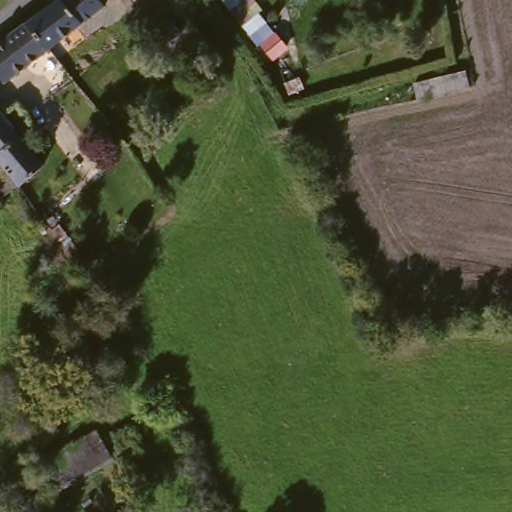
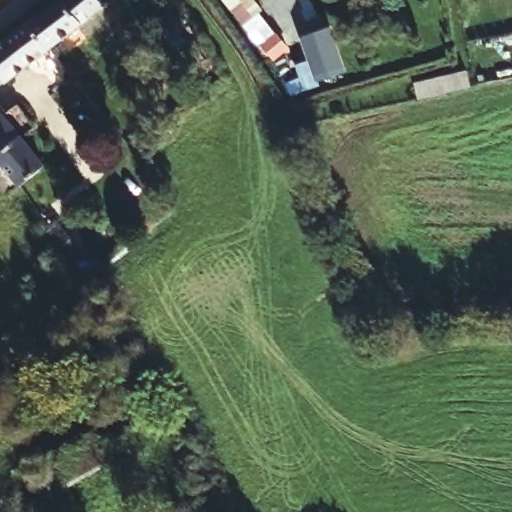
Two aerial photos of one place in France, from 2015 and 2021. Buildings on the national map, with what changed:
unchanged [(60,46),(37,16),(56,0),(111,0),(112,1),(60,46)]
unchanged [(253,35),(228,0),(262,0),(269,11),(263,15),(269,23),(291,48),(275,61),(253,35)]
unchanged [(9,77),(0,65),(0,48),(37,16),(60,46),(16,85),(9,77)]
new [(348,72),(315,83),(301,36),(332,26),(348,72)]
unchanged [(6,120),(7,123),(22,110),(33,123),(29,126),(37,137),(26,146),(41,166),(19,185),(3,196),(0,192),(0,113),(1,115),(6,120)]
unchanged [(36,512),(0,512),(0,491),(96,434),(112,467),(36,512)]

